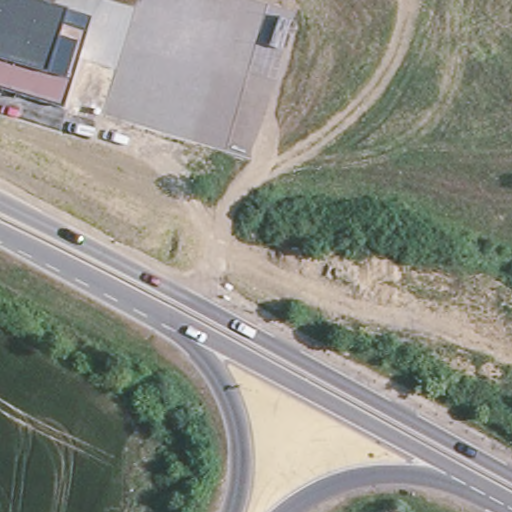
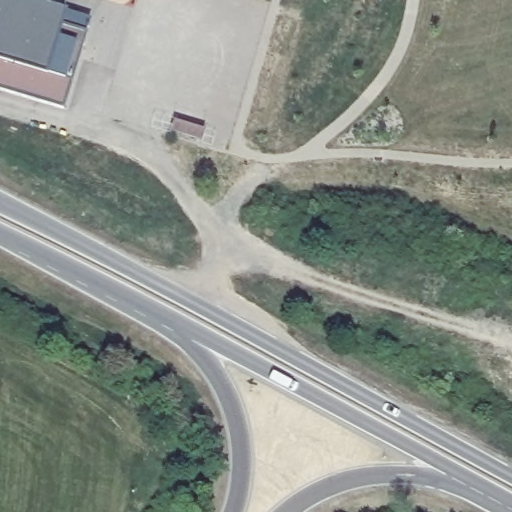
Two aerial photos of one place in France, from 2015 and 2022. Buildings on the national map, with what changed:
unchanged [(61,111),(0,92),(0,0),(22,0),(91,21),(61,111)]

